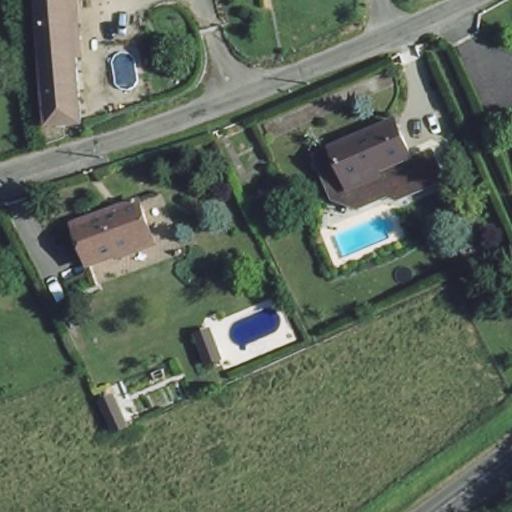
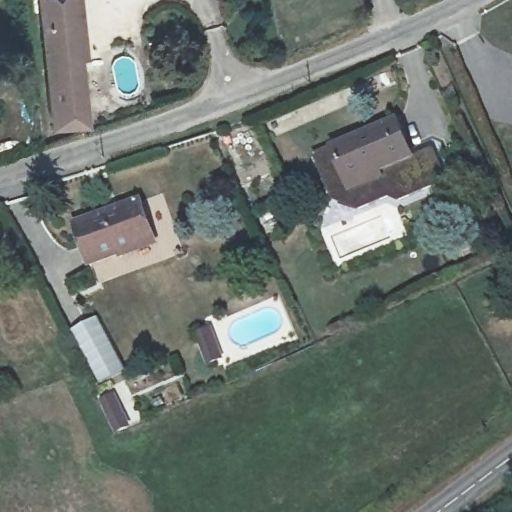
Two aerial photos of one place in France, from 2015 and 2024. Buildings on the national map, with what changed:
unchanged [(58,118),(46,0),(75,0),(87,114),(58,118)]
unchanged [(496,104),(500,104),(512,101),(512,126),(510,126),(501,127),(496,104)]
unchanged [(379,180),(374,174),(349,185),(334,152),(394,126),(412,164),(379,180)]
unchanged [(157,240),(97,263),(82,222),(142,200),(157,240)]
new [(73,332),(98,318),(126,372),(100,385),(73,332)]
unchanged [(207,367),(196,339),(209,333),(220,361),(207,367)]

